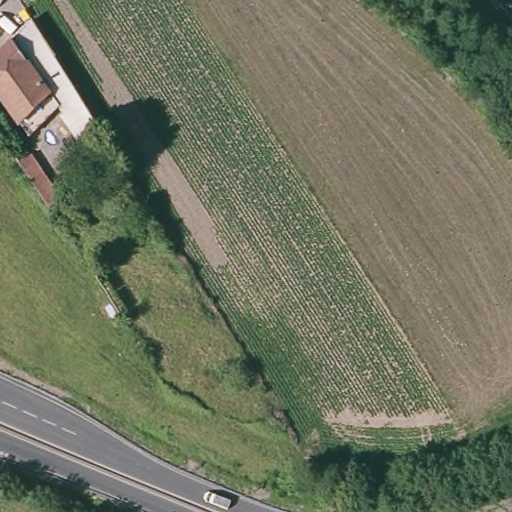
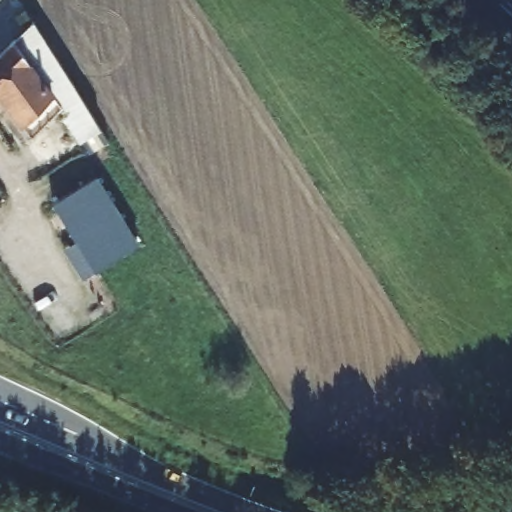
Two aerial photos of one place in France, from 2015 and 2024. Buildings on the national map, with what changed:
unchanged [(29,21),(99,133),(93,137),(88,130),(75,137),(55,106),(22,136),(0,102),(0,48),(29,21)]
demolished [(36,155),(65,201),(51,210),(22,165),(36,155)]
new [(140,242),(97,266),(56,199),(99,175),(140,242)]
new [(85,279),(67,249),(79,240),(98,271),(85,279)]

